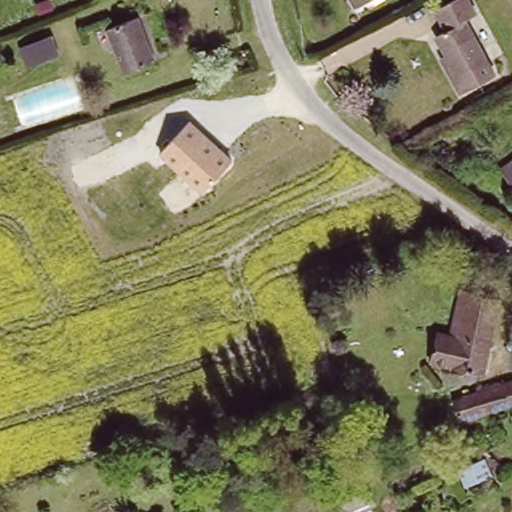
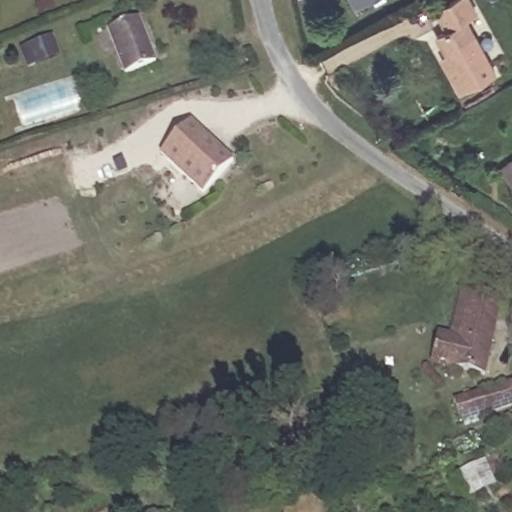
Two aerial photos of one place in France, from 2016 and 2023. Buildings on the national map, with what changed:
unchanged [(355,0),(366,0),(358,5),(355,0)]
unchanged [(436,27),(449,21),(438,0),(470,0),(472,5),(464,9),(495,65),(457,85),(442,58),(438,51),(446,46),(436,27)]
unchanged [(108,27),(140,14),(156,55),(123,67),(108,27)]
unchanged [(38,46),(45,62),(25,70),(19,54),(38,46)]
unchanged [(160,156),(191,121),(233,160),(201,195),(160,156)]
unchanged [(510,184),(497,167),(512,156),(512,182),(510,184)]
unchanged [(487,374),(432,362),(440,332),(461,337),(470,300),(465,298),(467,287),(507,297),(487,374)]
unchanged [(512,379),(512,403),(462,421),(455,399),(512,379)]
unchanged [(510,436),(512,434),(512,440),(510,436)]

